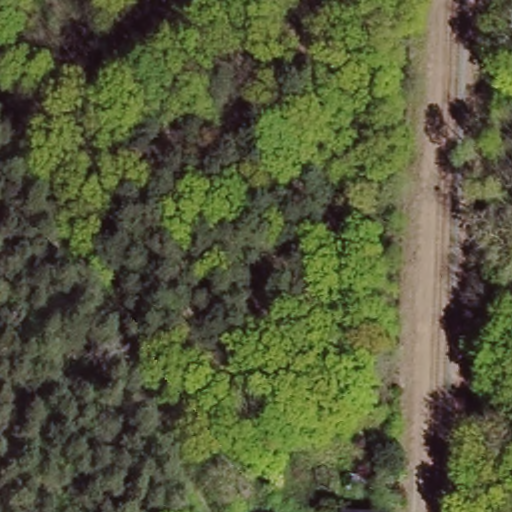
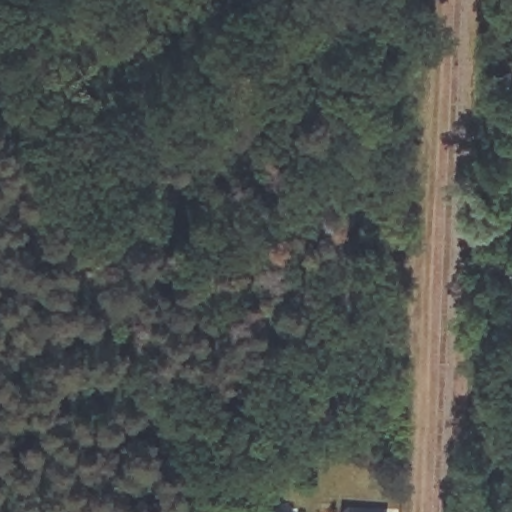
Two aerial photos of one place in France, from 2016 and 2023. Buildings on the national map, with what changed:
unchanged [(377,510),(385,510),(385,512),(346,512),(346,508),(377,510)]

